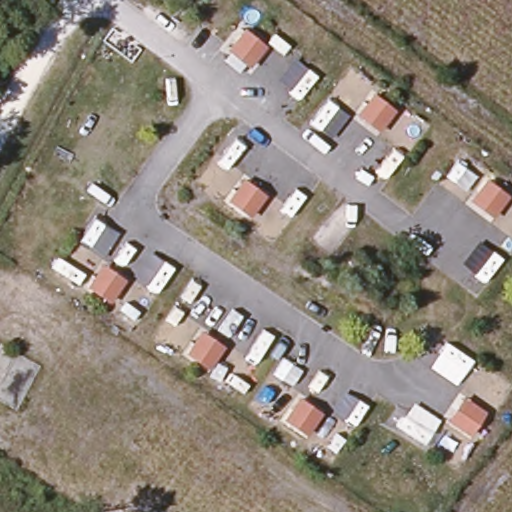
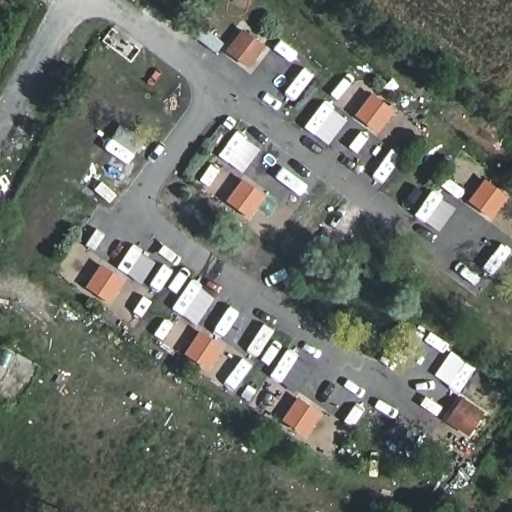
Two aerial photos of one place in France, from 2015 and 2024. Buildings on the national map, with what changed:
unchanged [(248,66),(225,48),(241,27),(263,45),(248,66)]
unchanged [(392,110),(376,131),(355,113),(370,92),(392,110)]
unchanged [(247,217),(226,200),(241,177),(263,195),(247,217)]
unchanged [(505,196),(490,217),(468,199),(483,178),(505,196)]
unchanged [(108,301),(84,285),(99,261),(122,278),(108,301)]
unchanged [(207,367),(185,351),(198,329),(222,345),(207,367)]
unchanged [(305,435),(282,418),(296,396),(318,412),(305,435)]
unchanged [(468,435),(445,418),(460,396),(482,411),(468,435)]

